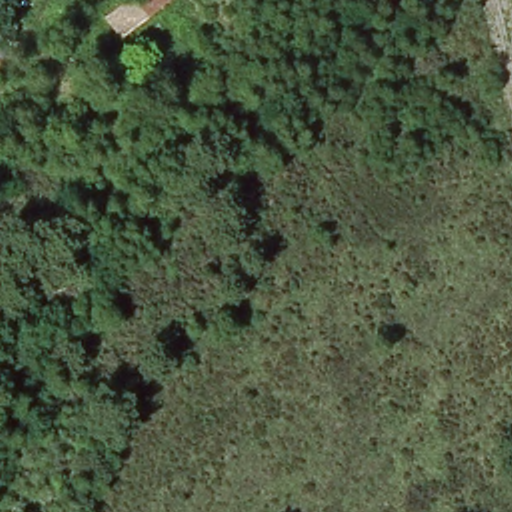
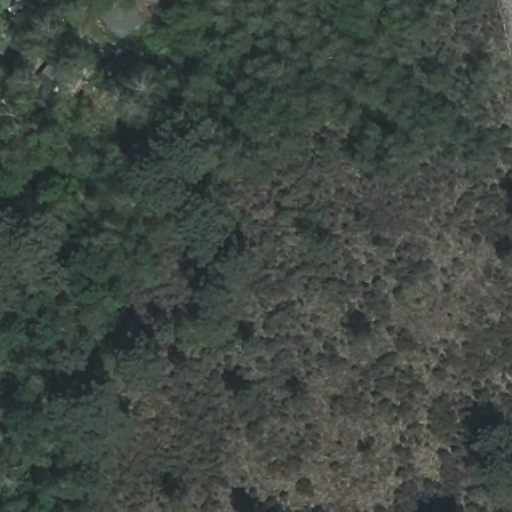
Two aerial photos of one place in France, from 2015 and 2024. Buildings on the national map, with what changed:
unchanged [(121,41),(105,20),(126,0),(172,0),(174,2),(121,41)]

